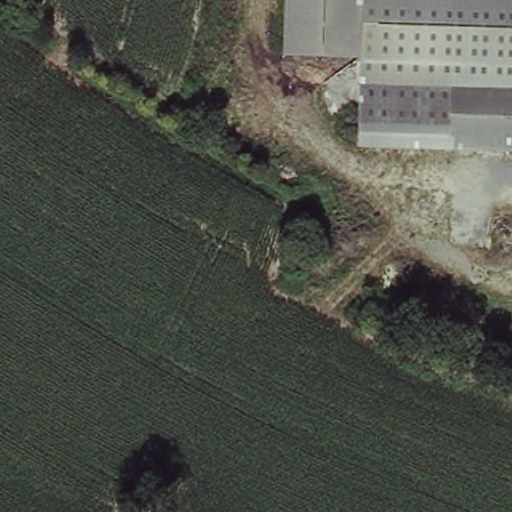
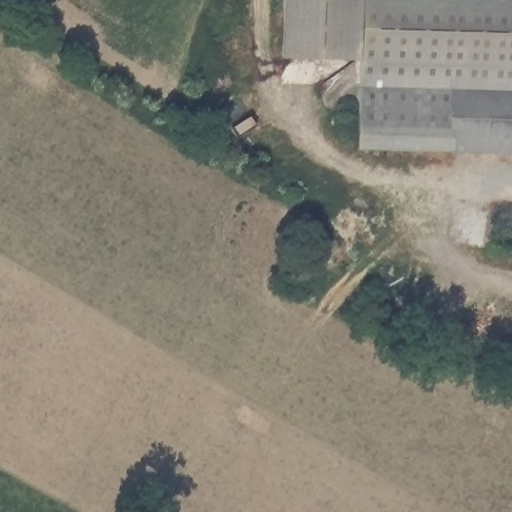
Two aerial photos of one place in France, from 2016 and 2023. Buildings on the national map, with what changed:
unchanged [(347,68),(271,65),(274,0),(350,0),(350,2),(512,8),(512,161),(343,154),(347,68)]

